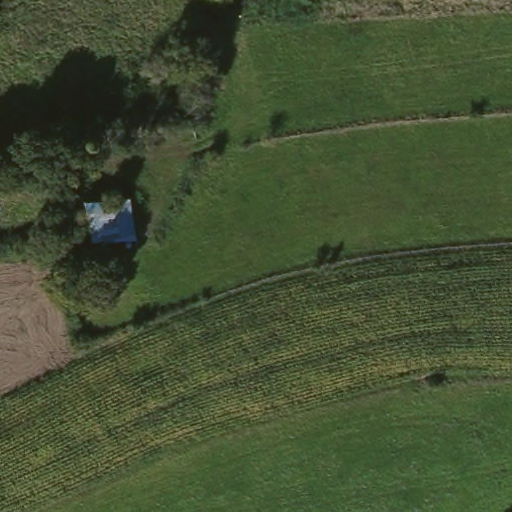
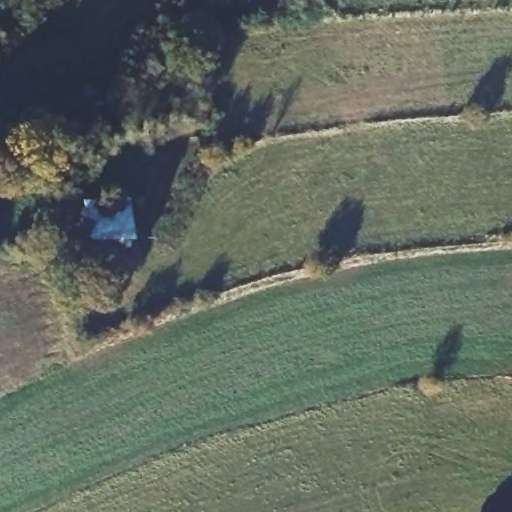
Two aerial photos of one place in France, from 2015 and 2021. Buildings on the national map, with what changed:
unchanged [(96,198),(139,196),(145,237),(102,240),(96,198)]

